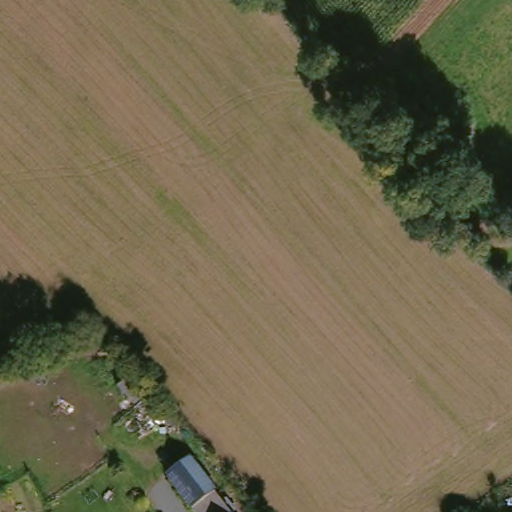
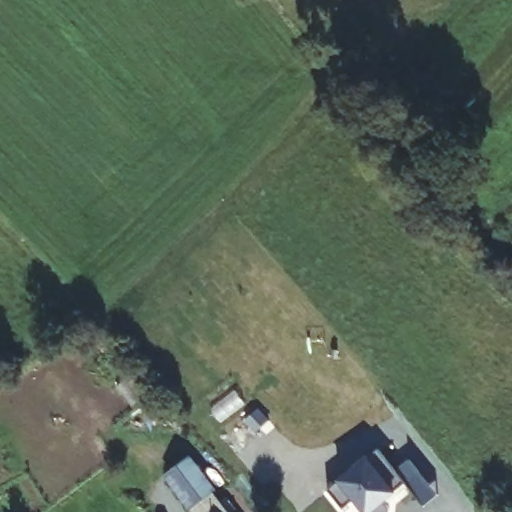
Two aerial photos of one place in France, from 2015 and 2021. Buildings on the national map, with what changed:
new [(352,500),(343,510),(328,490),(337,481),(366,457),(377,450),(395,471),(408,460),(428,483),(414,495),(406,486),(395,492),(383,503),(388,510),(388,512),(362,512),(352,500)]
unchanged [(201,468),(204,466),(236,512),(198,512),(179,483),(201,468)]

